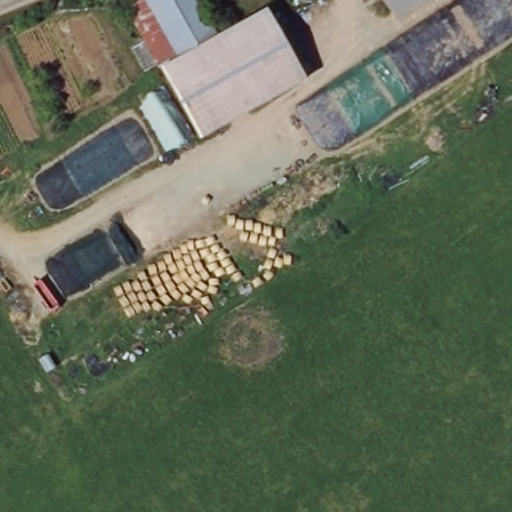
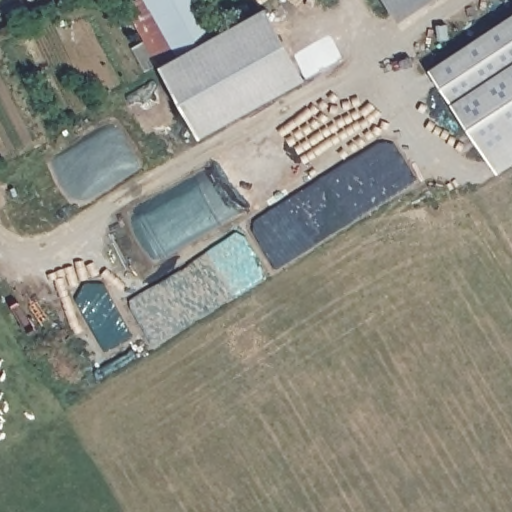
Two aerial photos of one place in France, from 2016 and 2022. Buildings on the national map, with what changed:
unchanged [(137,0),(150,0),(178,53),(157,64),(127,5),(137,0)]
unchanged [(213,36),(178,53),(150,0),(195,0),(213,36)]
unchanged [(397,20),(384,0),(428,0),(397,20)]
new [(512,147),(492,160),(424,58),(512,0),(512,147)]
unchanged [(264,6),(306,76),(198,137),(157,64),(178,53),(213,36),(264,6)]

